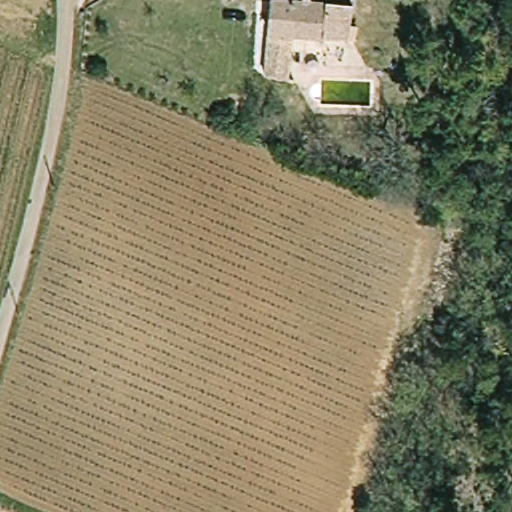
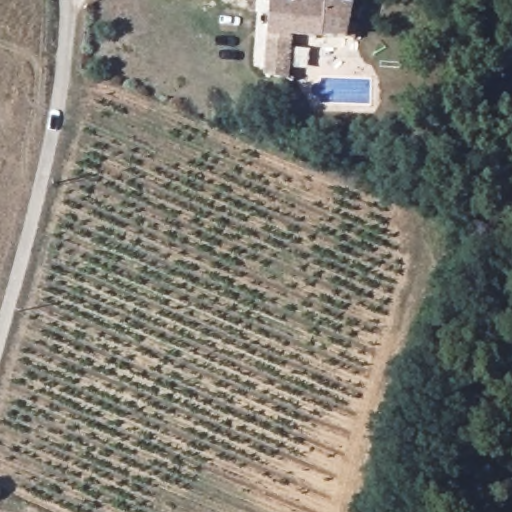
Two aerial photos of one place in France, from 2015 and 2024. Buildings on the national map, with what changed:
unchanged [(271,0),(316,0),(346,4),(344,21),(355,23),(354,36),(318,35),(288,33),(283,75),(276,74),(263,73),(264,69),(271,0)]

